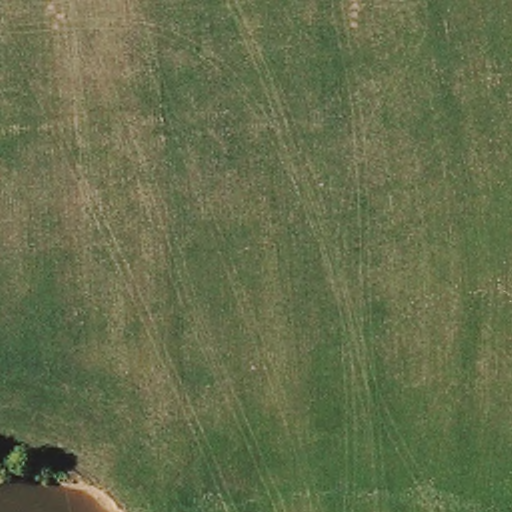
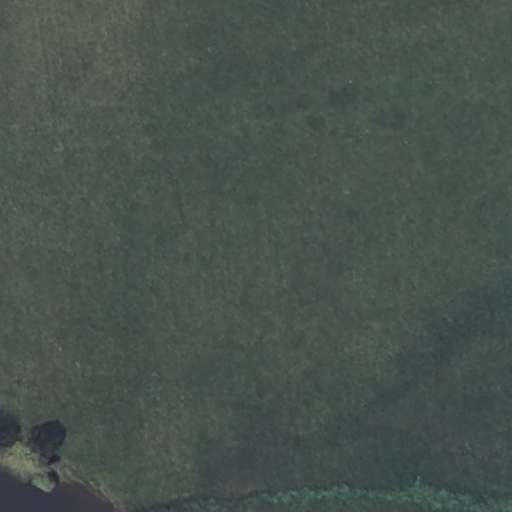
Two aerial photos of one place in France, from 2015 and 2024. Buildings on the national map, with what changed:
[]

